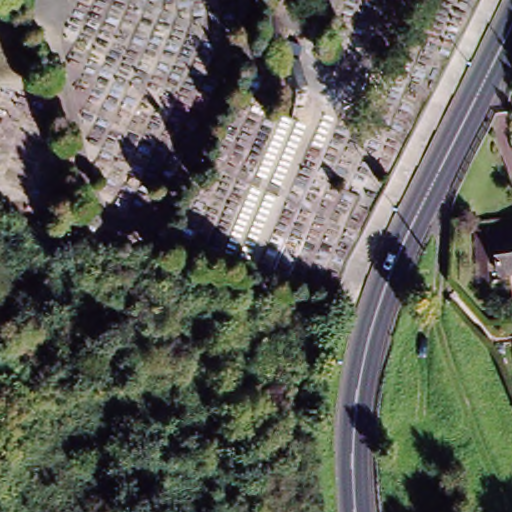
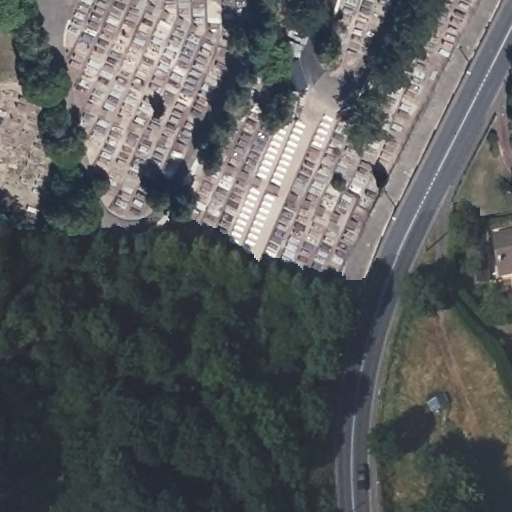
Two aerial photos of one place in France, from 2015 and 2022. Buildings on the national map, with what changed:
unchanged [(495,236),(497,279),(489,280),(486,237),(495,236)]
unchanged [(505,239),(512,237),(512,274),(512,275),(505,239)]

